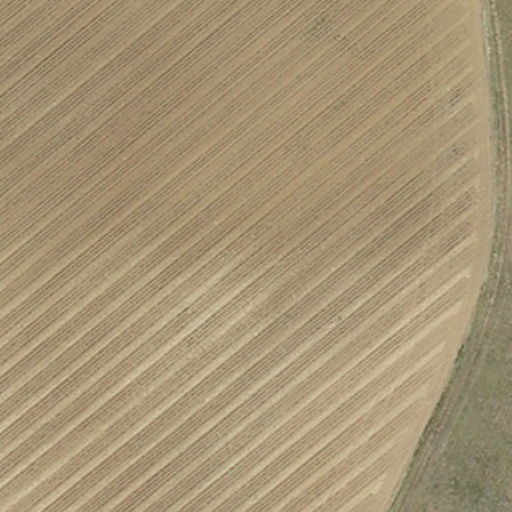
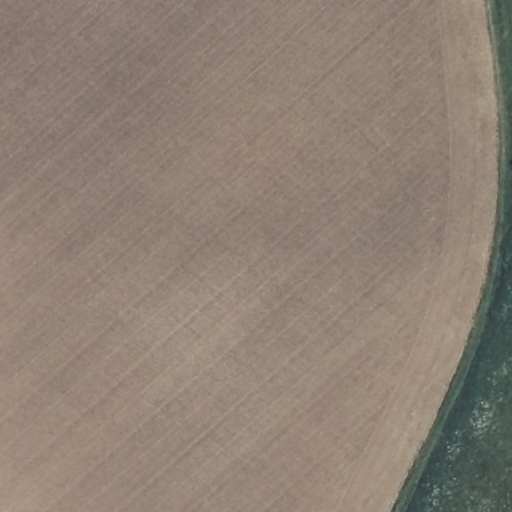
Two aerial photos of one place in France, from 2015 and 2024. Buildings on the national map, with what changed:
[]

